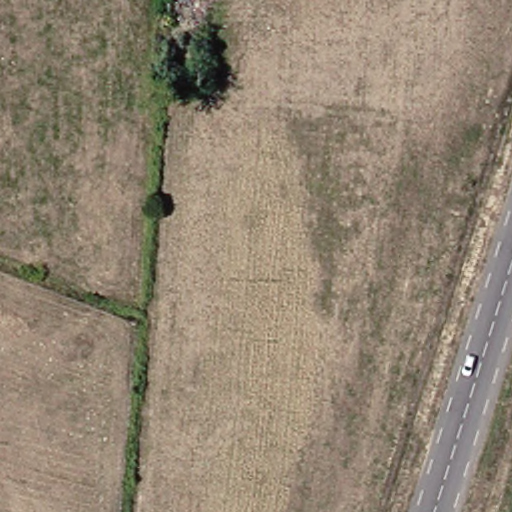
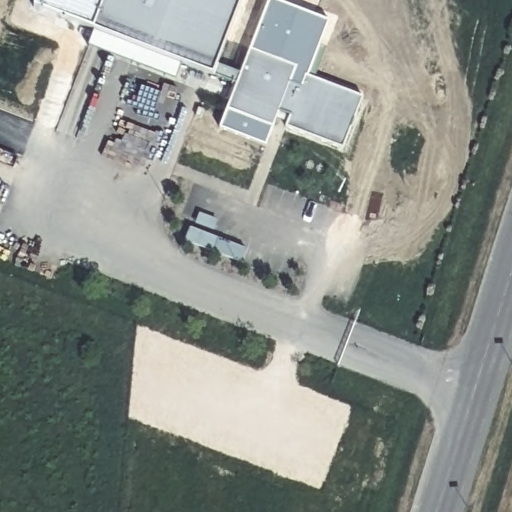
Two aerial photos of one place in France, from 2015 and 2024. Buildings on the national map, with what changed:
new [(93,29),(34,6),(36,0),(104,0),(93,29)]
new [(217,64),(242,72),(250,50),(295,67),(289,82),(302,86),(306,76),(362,97),(343,148),(286,127),(287,124),(275,120),(272,127),(227,108),(237,84),(213,75),(181,62),(175,80),(90,46),(93,29),(104,0),(241,0),(217,64)]
new [(318,45),(327,47),(316,80),(306,76),(302,86),(289,82),(295,67),(250,50),(269,0),(272,0),(327,22),(318,45)]

